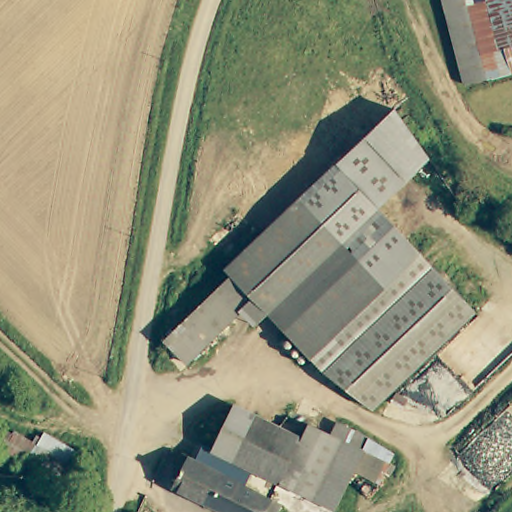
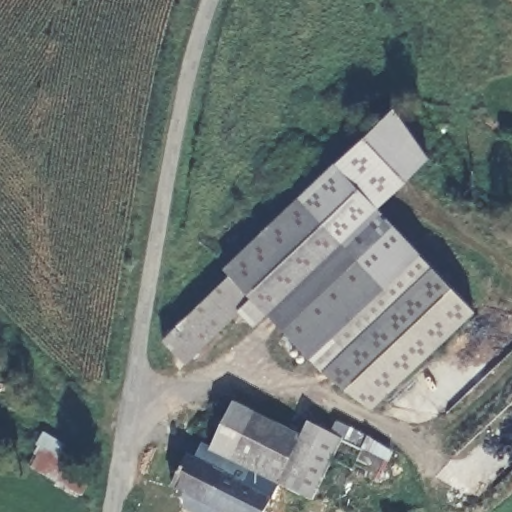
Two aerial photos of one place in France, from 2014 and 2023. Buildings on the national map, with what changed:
demolished [(512,67),(465,78),(443,0),(484,0),(500,0),(512,48),(512,67)]
unchanged [(434,160),(385,208),(343,165),(396,115),(434,160)]
unchanged [(246,316),(195,365),(171,345),(239,279),(232,272),(341,166),(481,310),(382,406),(350,386),(327,366),(304,345),(283,323),(277,317),(262,332),(246,316)]
unchanged [(215,449),(234,402),(258,412),(239,458),(215,449)]
unchanged [(258,466),(239,458),(258,412),(307,432),(286,478),(258,466)]
unchanged [(305,484),(286,478),(307,432),(313,417),(338,428),(343,417),(374,431),(370,441),(349,433),(319,491),(305,484)]
unchanged [(349,433),(370,441),(395,453),(388,471),(362,462),(340,500),(319,491),(349,433)]
unchanged [(37,468),(29,463),(39,443),(93,472),(90,497),(37,468)]
unchanged [(199,459),(205,445),(215,449),(239,458),(258,466),(250,484),(223,471),(199,459)]
unchanged [(225,512),(177,488),(193,456),(199,459),(223,471),(250,484),(276,497),(270,512),(225,512)]

